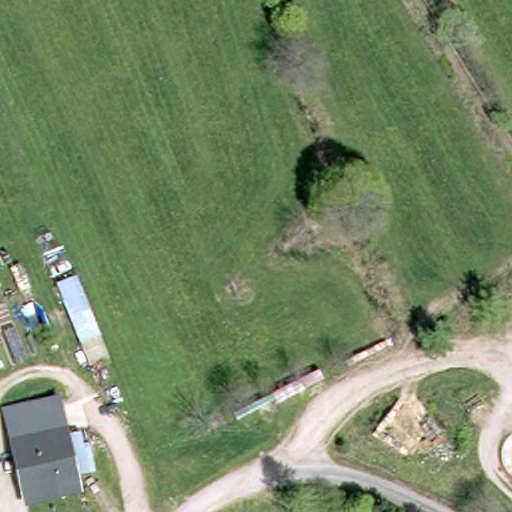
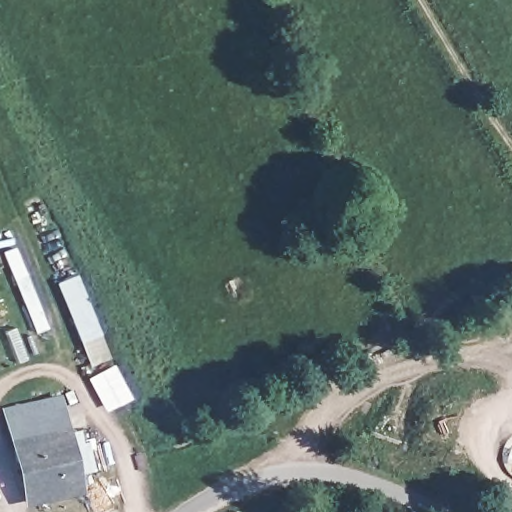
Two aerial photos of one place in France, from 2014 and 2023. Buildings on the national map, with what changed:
unchanged [(80,451),(84,468),(89,487),(71,491),(74,506),(50,512),(26,512),(16,469),(5,428),(52,416),(62,456),(75,452),(80,451)]

